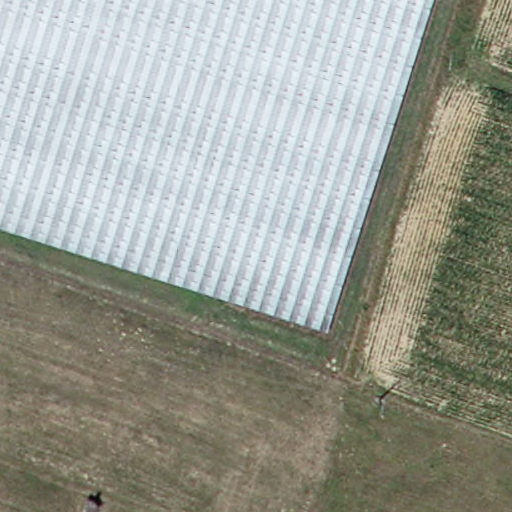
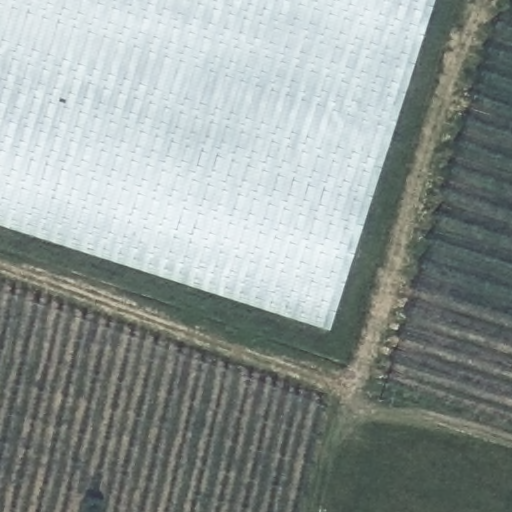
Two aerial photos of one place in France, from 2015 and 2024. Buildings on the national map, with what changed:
unchanged [(0,229),(0,0),(429,0),(318,332),(0,229)]

